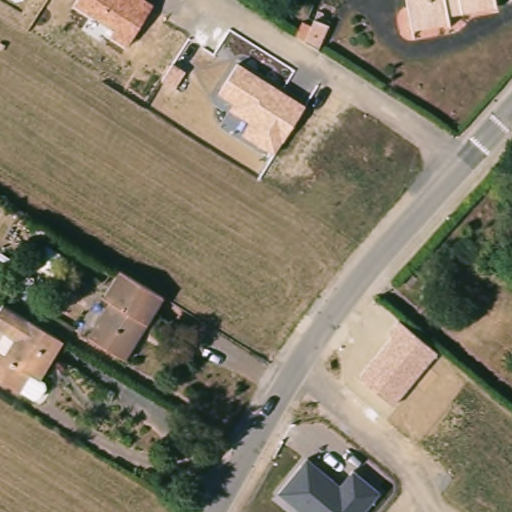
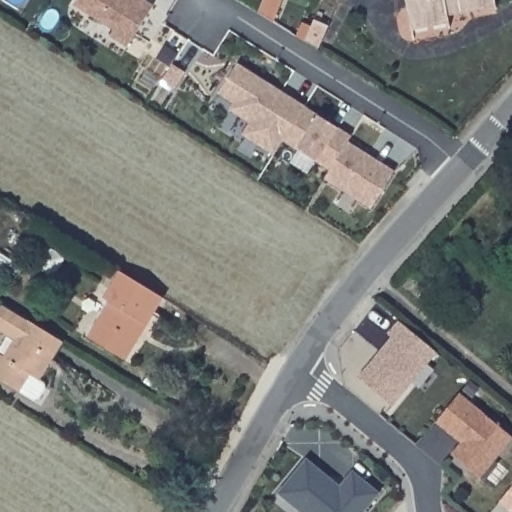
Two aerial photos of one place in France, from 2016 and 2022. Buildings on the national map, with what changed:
unchanged [(145,0),(153,5),(127,48),(109,36),(114,29),(77,4),(79,0),(145,0)]
unchanged [(448,14),(450,21),(411,28),(406,0),(493,0),(495,5),(448,14)]
unchanged [(319,48),(310,42),(303,37),(312,15),(320,20),(333,27),(319,48)]
unchanged [(239,62),(306,105),(275,157),(242,136),(250,123),(230,109),(234,102),(220,93),(239,62)]
new [(318,114),(338,125),(354,134),(349,141),(394,169),(371,206),(325,177),(330,168),(317,161),(298,148),(285,140),(306,105),(318,114)]
unchanged [(104,299),(120,272),(163,299),(125,362),(91,341),(82,335),(104,299)]
unchanged [(0,334),(0,307),(60,344),(36,382),(26,376),(15,394),(0,385),(0,355),(10,340),(0,334)]
unchanged [(391,337),(387,333),(400,319),(439,354),(392,406),(360,375),(391,337)]
new [(512,441),(512,442),(479,481),(450,458),(460,446),(460,441),(452,434),(449,437),(435,425),(459,396),(512,441)]
unchanged [(380,491),(363,512),(305,512),(278,490),(306,455),(341,483),(352,469),(380,491)]

